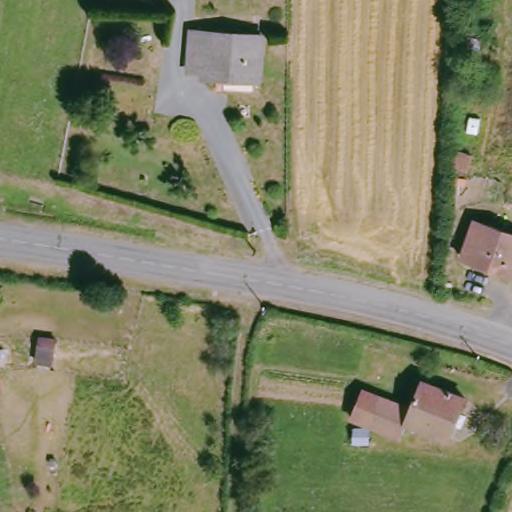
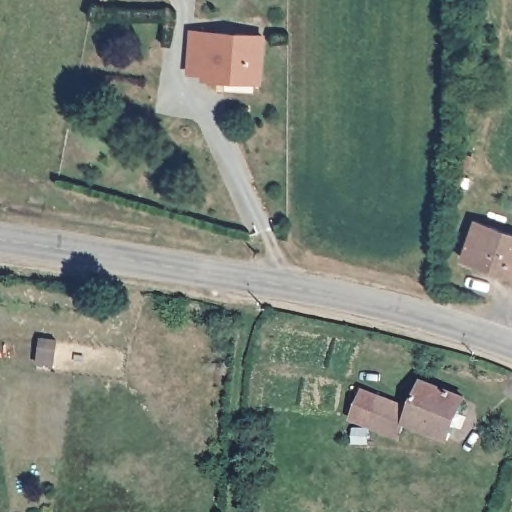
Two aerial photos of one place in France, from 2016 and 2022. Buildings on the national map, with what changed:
unchanged [(201,76),(202,73),(186,71),(190,30),(261,36),(258,81),(201,76)]
unchanged [(480,225),(512,236),(512,278),(467,264),(480,225)]
unchanged [(417,396),(425,379),(470,399),(450,447),(410,430),(404,444),(375,432),(373,448),(355,446),(355,429),(363,426),(351,422),(367,390),(417,396)]

